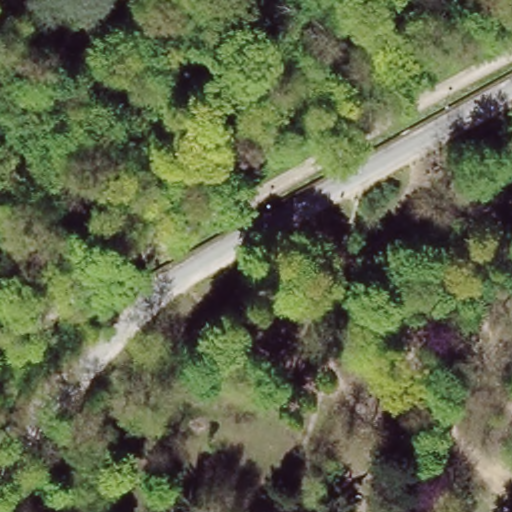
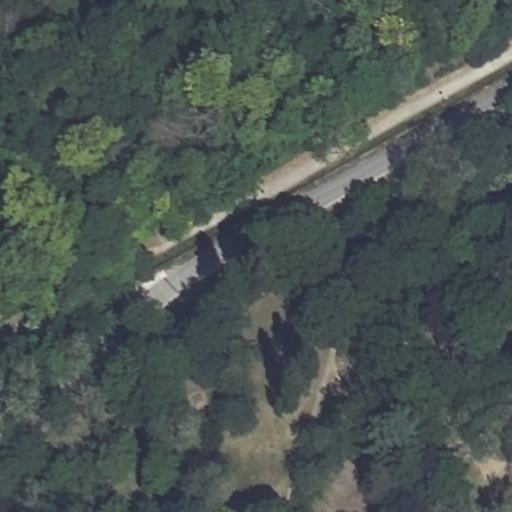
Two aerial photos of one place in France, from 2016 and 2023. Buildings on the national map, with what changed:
[]

